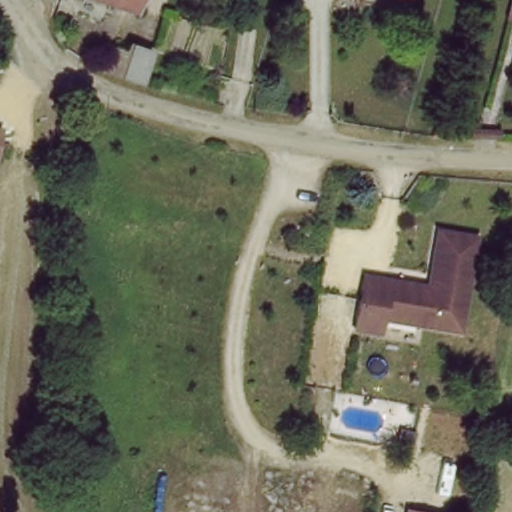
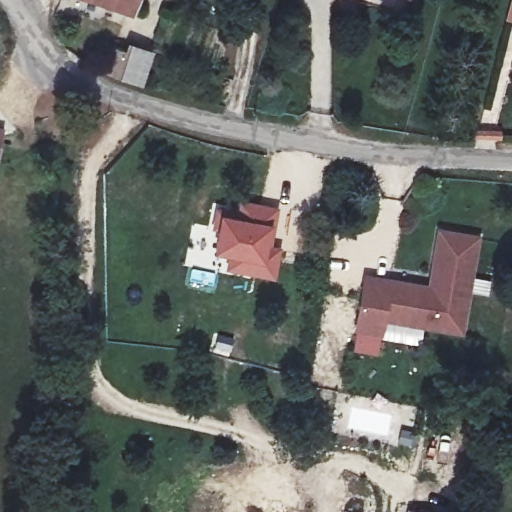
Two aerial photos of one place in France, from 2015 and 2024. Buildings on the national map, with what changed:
unchanged [(108,0),(137,0),(135,8),(108,0)]
unchanged [(506,0),(512,0),(512,20),(502,17),(506,0)]
unchanged [(115,47),(130,51),(133,46),(155,53),(145,83),(126,77),(107,70),(115,47)]
unchanged [(2,130),(0,139),(0,130),(2,130)]
new [(223,211),(232,213),(234,199),(279,206),(273,244),(285,247),(278,280),(225,271),(227,255),(216,253),(223,211)]
unchanged [(420,293),(430,237),(469,244),(452,336),(375,322),(371,339),(349,335),(358,282),(420,293)]

